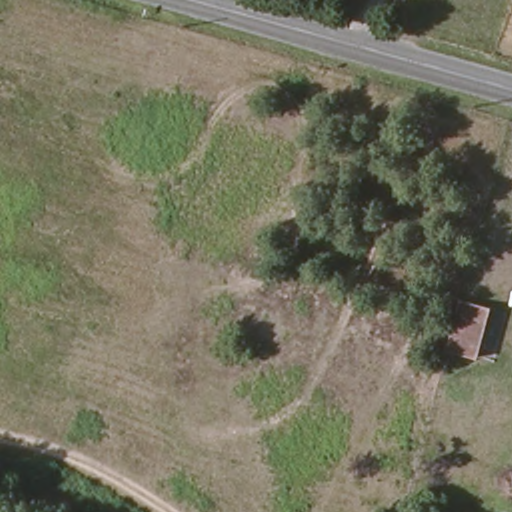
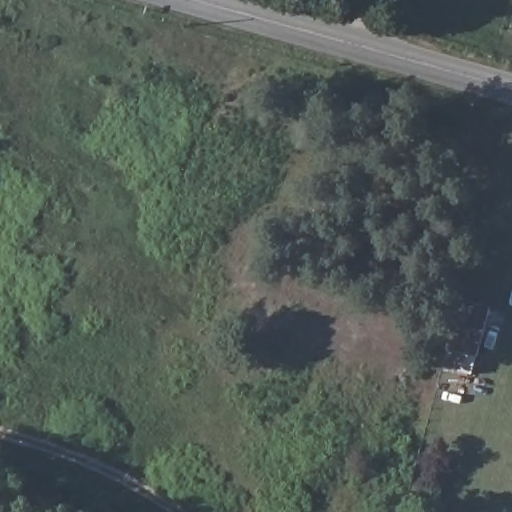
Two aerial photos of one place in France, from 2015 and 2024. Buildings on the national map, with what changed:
unchanged [(481,357),(450,349),(461,303),(493,309),(481,357)]

